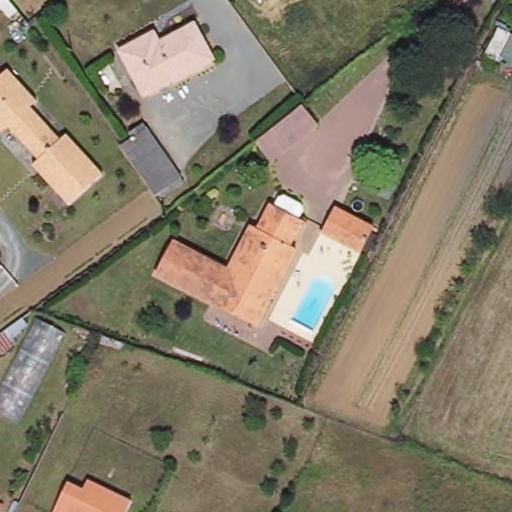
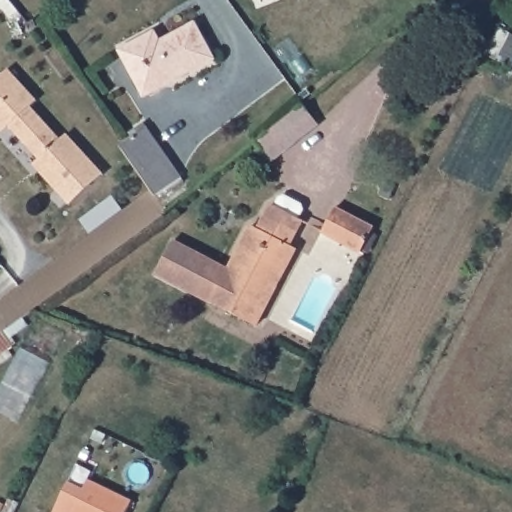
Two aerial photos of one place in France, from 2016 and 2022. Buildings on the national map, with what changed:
unchanged [(148,41),(154,52),(175,42),(174,40),(189,32),(207,65),(140,100),(116,57),(148,41)]
unchanged [(43,159),(45,157),(14,125),(1,124),(0,123),(0,79),(12,68),(41,99),(34,105),(65,138),(71,132),(89,151),(108,171),(76,202),(52,178),(47,171),(39,163),(43,159)]
unchanged [(318,127),(271,164),(267,158),(256,144),(302,107),(318,127)]
unchanged [(137,140),(134,135),(143,128),(182,184),(154,203),(149,195),(120,153),(137,140)]
unchanged [(227,271),(251,228),(257,231),(269,206),(273,209),(277,202),(283,199),(298,206),(300,213),(296,220),(301,223),(287,247),(295,251),(254,327),(211,304),(227,271)]
unchanged [(360,253),(321,233),(333,209),(372,229),(360,253)]
unchanged [(211,304),(154,274),(172,242),(227,271),(211,304)]
unchanged [(82,481),(127,502),(122,512),(50,512),(65,483),(79,490),(82,481)]

